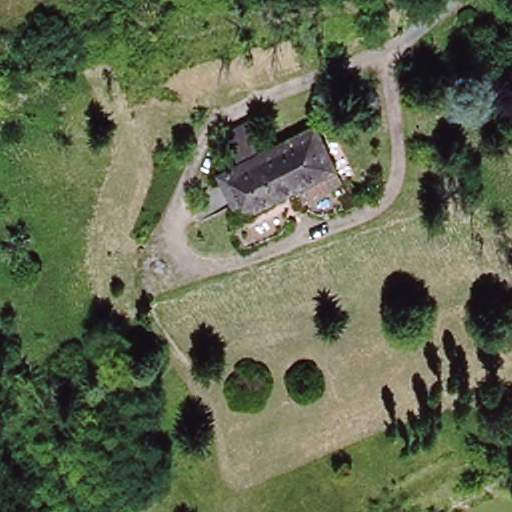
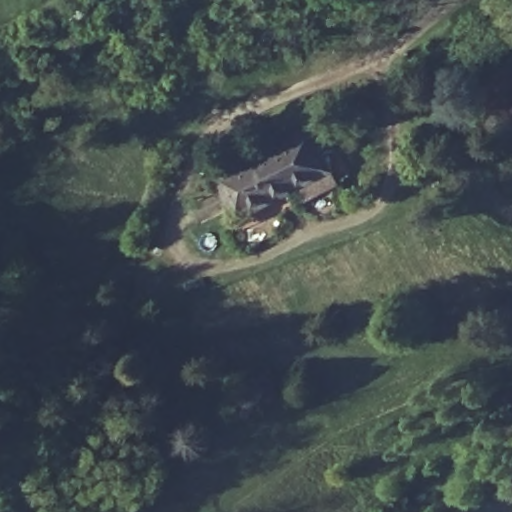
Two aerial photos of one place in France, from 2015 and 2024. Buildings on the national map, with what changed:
unchanged [(268,149),(323,123),(337,172),(342,184),(303,205),(297,194),(242,221),(221,175),(238,166),(228,134),(256,121),(268,149)]

